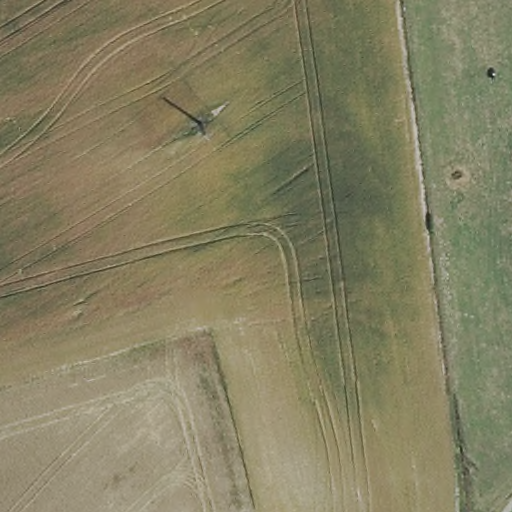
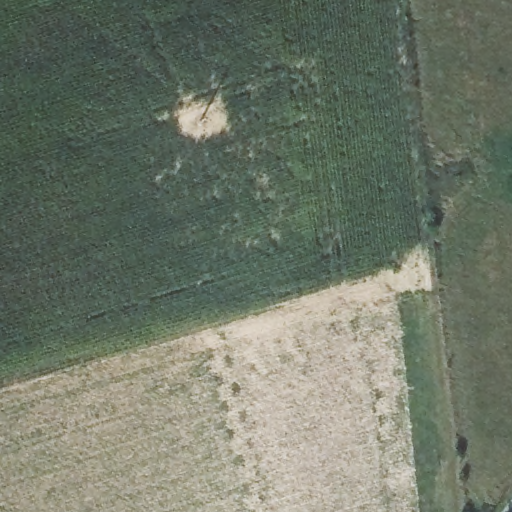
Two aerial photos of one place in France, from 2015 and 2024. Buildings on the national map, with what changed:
[]

